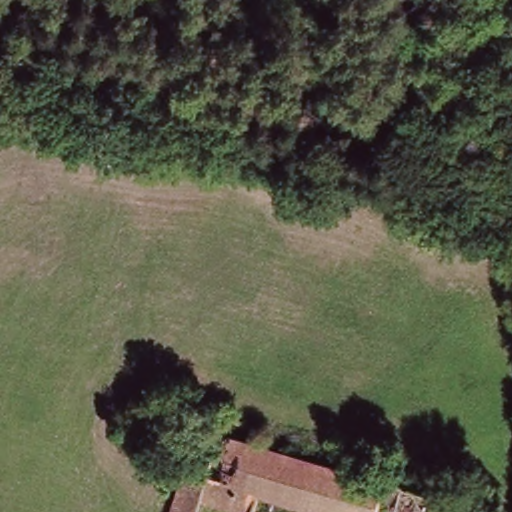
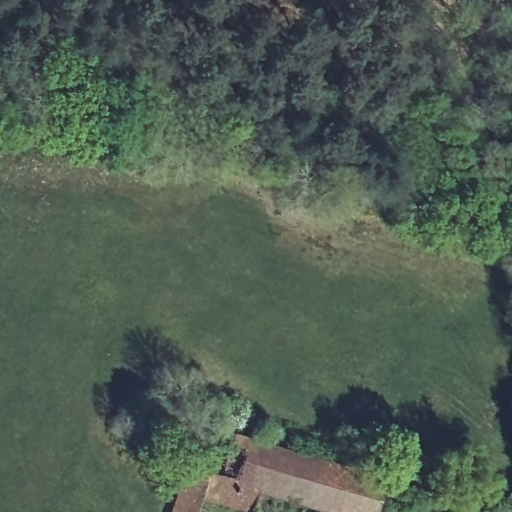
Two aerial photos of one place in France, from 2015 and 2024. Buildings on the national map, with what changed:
unchanged [(250,512),(254,500),(207,484),(197,512),(175,512),(190,462),(206,467),(221,422),(453,498),(448,512),(250,512)]

